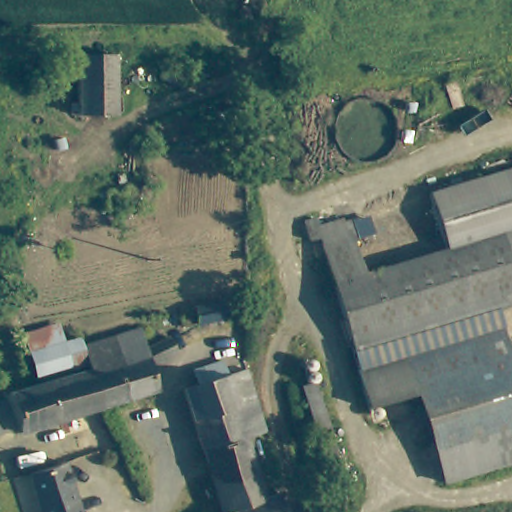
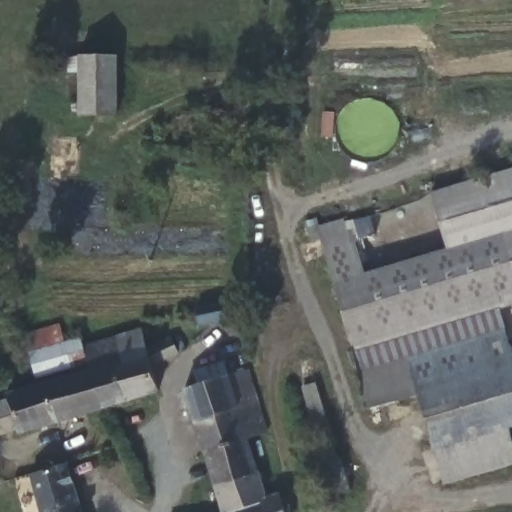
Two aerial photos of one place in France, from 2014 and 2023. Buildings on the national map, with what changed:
unchanged [(80,116),(79,55),(115,55),(115,114),(80,116)]
unchanged [(447,250),(432,195),(512,173),(512,275),(500,235),(447,250)]
unchanged [(345,322),(323,239),(312,241),(307,222),(317,220),(319,227),(344,220),(345,222),(364,217),(368,234),(353,239),(363,272),(374,312),(345,322)]
unchanged [(447,250),(500,235),(512,275),(512,296),(495,300),(350,340),(345,322),(374,312),(363,272),(447,250)]
unchanged [(228,300),(233,313),(202,326),(200,308),(228,300)]
unchanged [(512,363),(512,423),(503,425),(512,456),(512,466),(442,485),(417,397),(368,409),(350,340),(495,300),(512,363)]
unchanged [(191,312),(195,313),(196,316),(197,320),(196,323),(194,325),(190,326),(187,326),(184,324),(182,321),(183,317),(185,315),(187,312),(191,312)]
unchanged [(67,371),(35,381),(21,339),(55,329),(67,371)]
unchanged [(144,352),(168,343),(173,356),(149,367),(157,393),(127,403),(116,367),(116,361),(115,357),(111,340),(135,332),(137,331),(144,352)]
unchanged [(79,350),(111,340),(115,357),(116,361),(116,367),(127,403),(97,412),(85,372),(79,350)]
unchanged [(190,420),(180,389),(200,382),(195,367),(221,358),(226,373),(245,367),(255,398),(190,420)]
unchanged [(5,405),(3,400),(9,397),(31,390),(85,372),(97,412),(16,438),(0,443),(0,406),(5,405)]
unchanged [(247,436),(201,452),(190,420),(255,398),(265,430),(247,436)]
unchanged [(212,485),(201,452),(247,436),(258,470),(212,485)]
unchanged [(30,470),(27,470),(25,468),(23,465),(22,462),(24,459),(26,457),(33,457),(39,472),(67,463),(82,512),(44,512),(31,470),(30,470)]
unchanged [(221,512),(212,485),(258,470),(266,495),(229,512),(221,512)]
unchanged [(278,491),(285,512),(229,512),(266,495),(278,491)]

